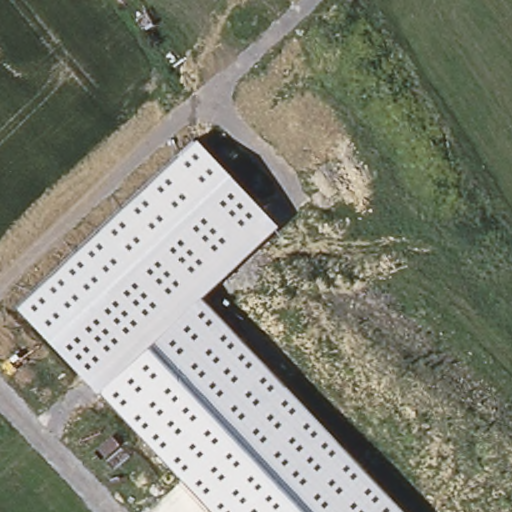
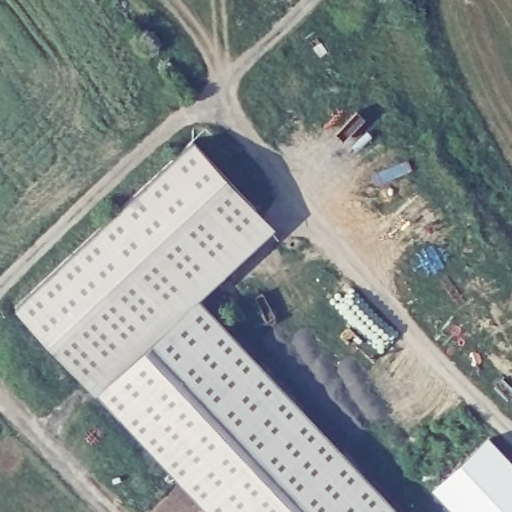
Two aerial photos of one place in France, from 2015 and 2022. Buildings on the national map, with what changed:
unchanged [(197,136),(276,225),(201,296),(404,512),(211,512),(15,306),(197,136)]
new [(489,433),(512,458),(512,512),(455,512),(432,487),(489,433)]

